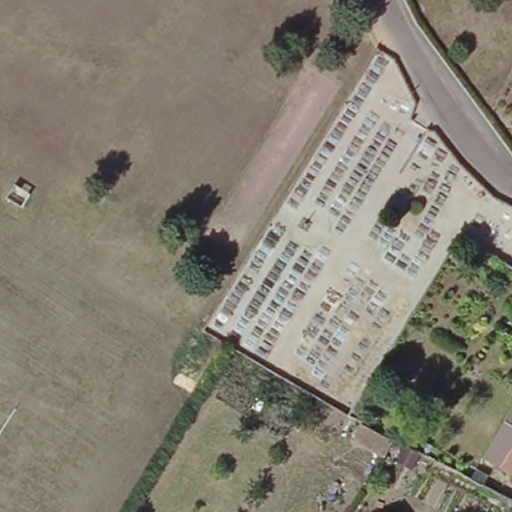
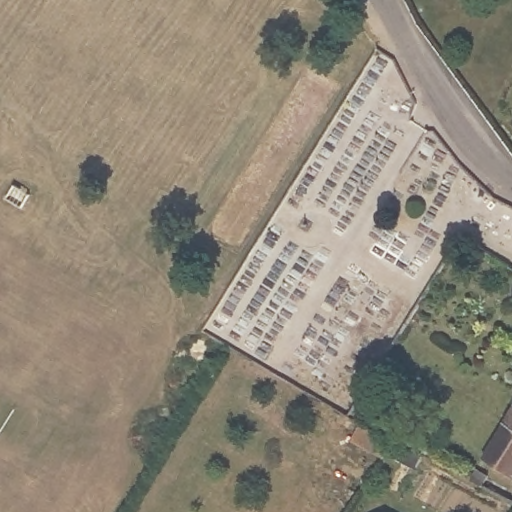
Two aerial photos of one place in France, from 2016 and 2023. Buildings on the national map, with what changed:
unchanged [(512,473),(511,476),(481,455),(512,409),(512,473)]
unchanged [(368,413),(430,451),(418,474),(352,440),(368,413)]
unchanged [(476,465),(489,473),(483,481),(470,474),(476,465)]

